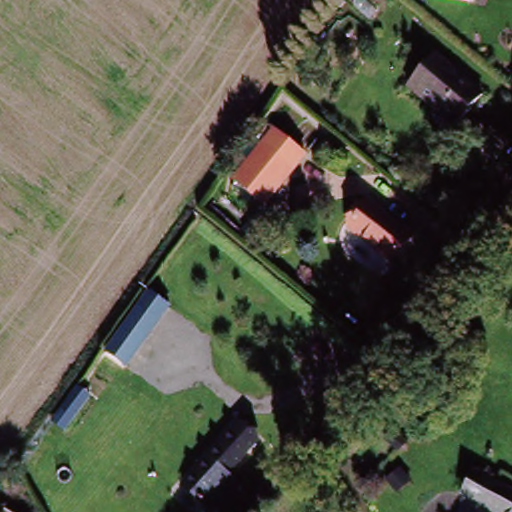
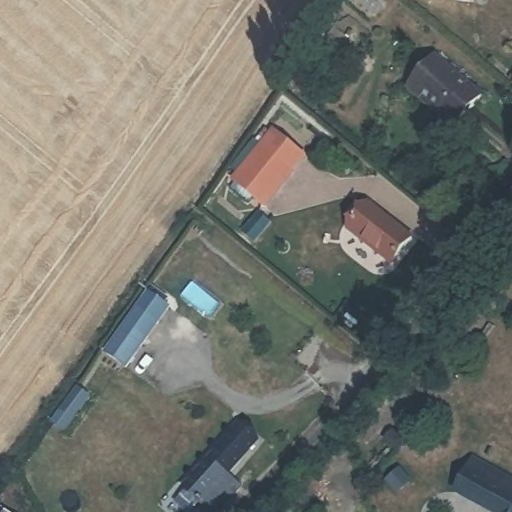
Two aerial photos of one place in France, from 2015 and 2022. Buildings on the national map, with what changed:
unchanged [(452,0),(464,0),(464,3),(452,0)]
unchanged [(435,104),(431,107),(406,88),(432,58),(480,97),(459,125),(435,104)]
unchanged [(506,83),(512,75),(512,88),(506,83)]
unchanged [(231,180),(275,128),(307,155),(264,204),(231,180)]
unchanged [(352,223),(371,202),(415,238),(395,261),(352,223)]
unchanged [(99,341),(141,280),(162,296),(122,357),(99,341)]
unchanged [(186,484),(238,423),(256,438),(224,476),(242,493),(224,512),(216,512),(186,484)]
unchanged [(462,497),(472,478),(512,501),(512,512),(490,512),(462,497)]

